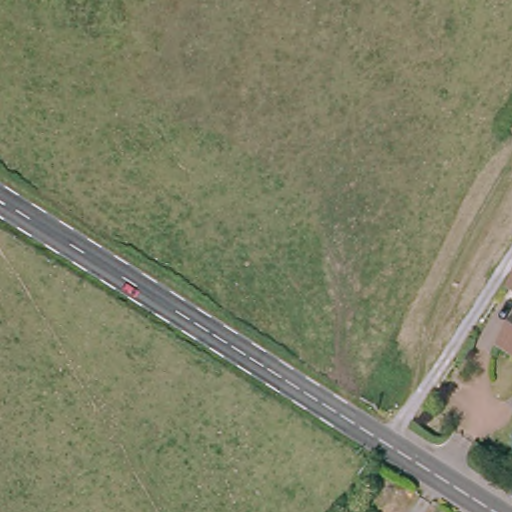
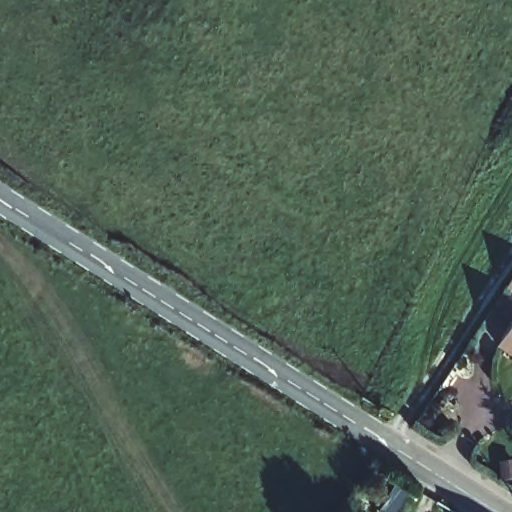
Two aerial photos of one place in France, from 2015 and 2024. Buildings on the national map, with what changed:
unchanged [(512,267),(512,290),(501,283),(512,267)]
unchanged [(512,322),(512,356),(497,346),(512,322)]

